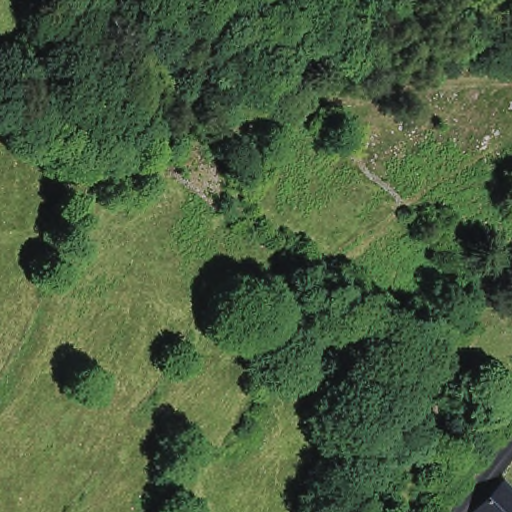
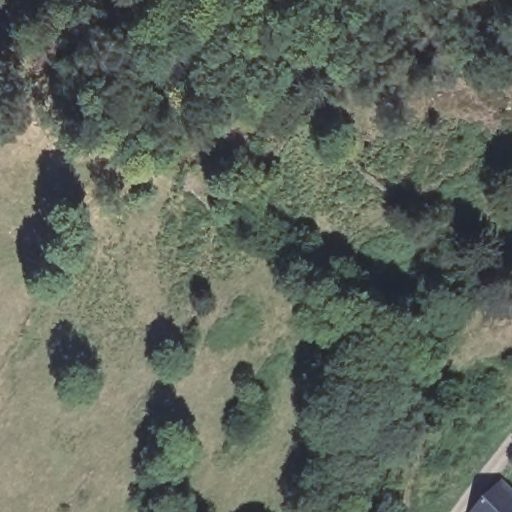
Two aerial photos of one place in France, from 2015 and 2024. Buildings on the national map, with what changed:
unchanged [(494,480),(512,496),(512,512),(462,512),(464,509),(494,480)]

